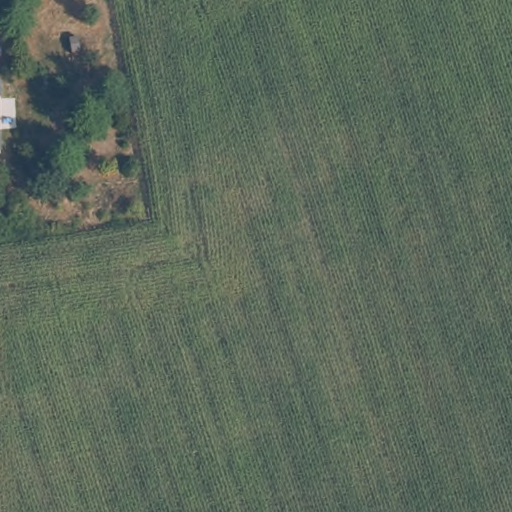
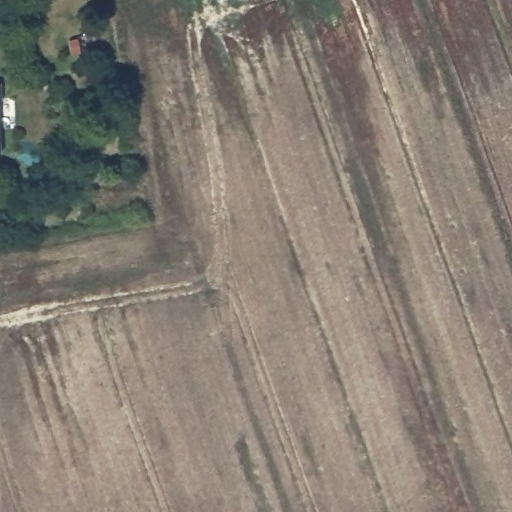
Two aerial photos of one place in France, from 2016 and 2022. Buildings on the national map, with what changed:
unchanged [(2,104),(0,104),(0,81),(1,81),(2,104)]

